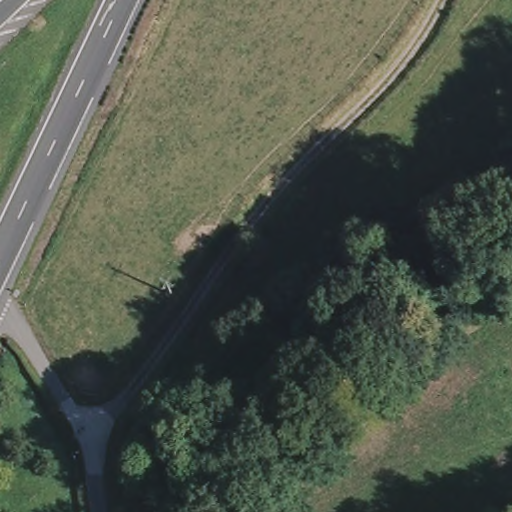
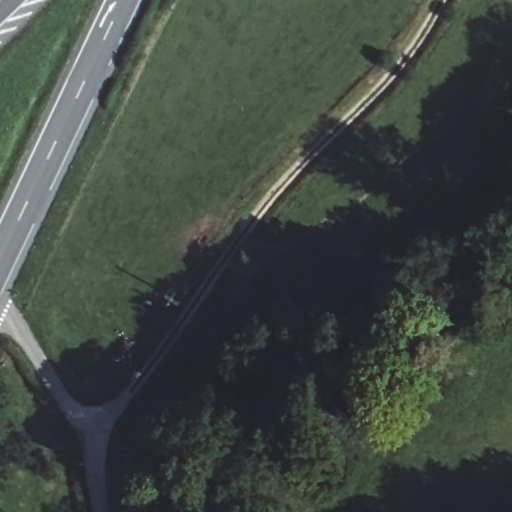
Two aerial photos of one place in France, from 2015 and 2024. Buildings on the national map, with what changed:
[]

